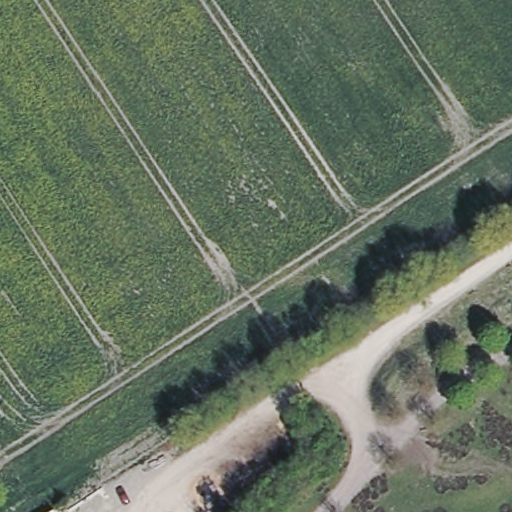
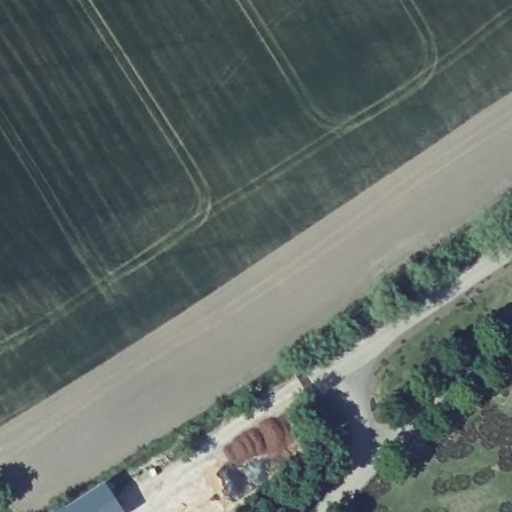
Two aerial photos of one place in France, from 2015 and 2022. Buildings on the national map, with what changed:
new [(50,512),(62,504),(65,509),(102,484),(121,512),(50,512)]

